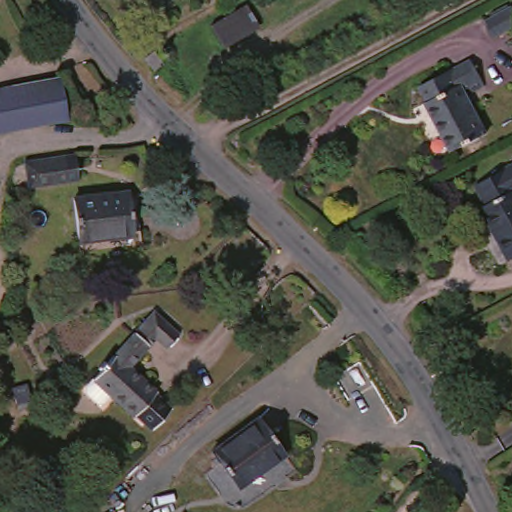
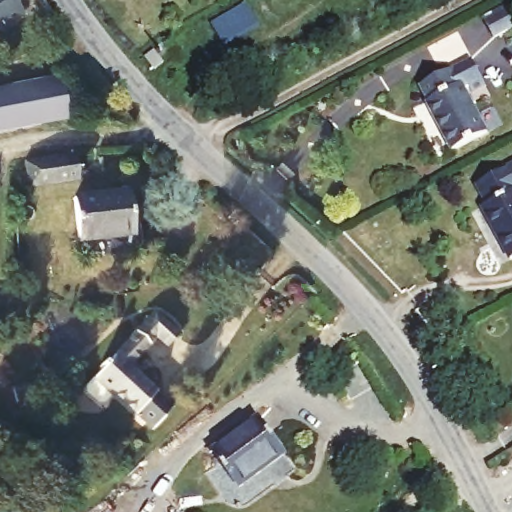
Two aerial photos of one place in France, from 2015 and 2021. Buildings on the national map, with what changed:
new [(3,21),(0,23),(0,0),(16,0),(23,12),(5,25),(3,21)]
unchanged [(498,0),(510,0),(512,3),(512,17),(489,29),(479,10),(498,0)]
unchanged [(216,55),(204,35),(241,12),(253,32),(216,55)]
unchanged [(420,92),(466,66),(480,93),(466,100),(488,142),(449,163),(423,110),(428,108),(420,92)]
unchanged [(61,85),(71,130),(0,146),(0,101),(61,85)]
unchanged [(74,164),(75,169),(79,189),(24,200),(20,172),(74,164)]
unchanged [(486,217),(491,215),(479,194),(512,175),(512,268),(509,269),(484,222),(486,217)]
unchanged [(76,254),(71,212),(128,205),(132,246),(76,254)]
unchanged [(131,423),(93,386),(139,332),(152,318),(175,340),(163,353),(152,345),(128,372),(154,398),(131,423)]
unchanged [(234,497),(205,460),(252,422),(281,460),(234,497)]

